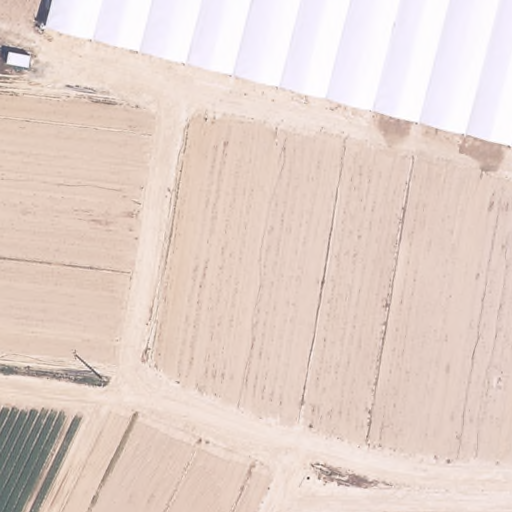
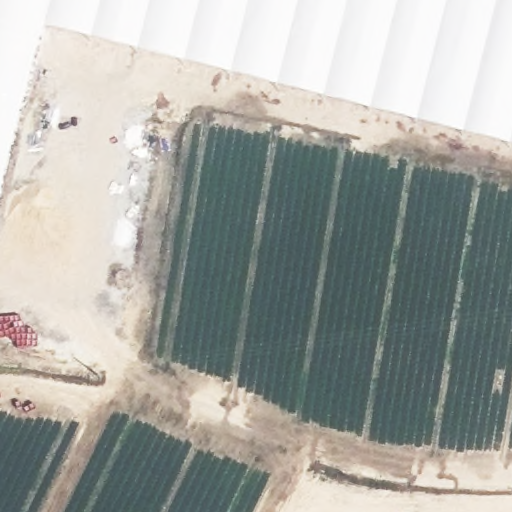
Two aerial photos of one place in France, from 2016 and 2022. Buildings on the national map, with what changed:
new [(41,28),(0,188),(0,0),(53,0),(46,29),(41,28)]
unchanged [(501,139),(347,102),(46,29),(53,0),(512,0),(512,142),(501,139)]

